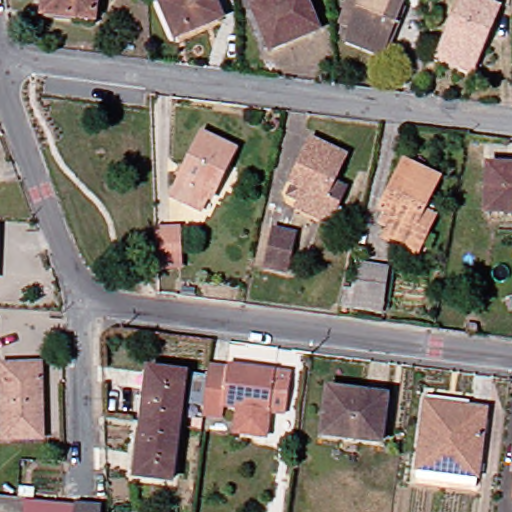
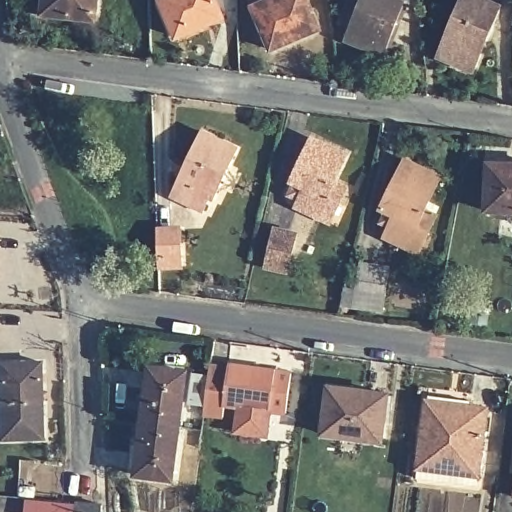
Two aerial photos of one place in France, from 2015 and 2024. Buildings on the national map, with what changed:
unchanged [(95,18),(45,12),(46,0),(97,0),(95,18)]
unchanged [(224,16),(177,36),(161,0),(217,0),(224,16)]
unchanged [(321,32),(273,53),(255,10),(251,0),(308,0),(321,32)]
unchanged [(355,0),(410,0),(408,5),(388,59),(352,45),(357,33),(344,27),(355,0)]
unchanged [(501,5),(473,71),(439,57),(463,0),(490,0),(501,5)]
unchanged [(205,132),(237,147),(214,197),(209,195),(203,208),(176,195),(205,132)]
unchanged [(302,210),(306,202),(296,196),(301,185),(298,184),(320,141),(354,158),(332,203),(343,209),(338,219),(335,226),(302,210)]
unchanged [(388,213),(412,163),(447,180),(425,225),(437,231),(428,249),(385,227),(391,214),(388,213)]
unchanged [(512,164),(512,211),(490,210),(491,163),(512,164)]
unchanged [(300,232),(290,271),(268,266),(277,226),(300,232)]
unchanged [(182,228),(182,266),(160,266),(158,229),(182,228)]
unchanged [(0,286),(0,234),(6,235),(3,286),(0,286)]
unchanged [(392,267),(386,309),(356,305),(362,263),(392,267)]
unchanged [(44,362),(46,437),(5,438),(3,363),(44,362)]
unchanged [(251,433),(235,430),(239,405),(224,403),(222,415),(205,412),(212,363),(229,365),(229,362),(292,371),(287,412),(271,410),(267,435),(251,433)]
unchanged [(144,420),(151,366),(188,371),(181,425),(144,420)]
unchanged [(389,393),(383,440),(324,432),(330,386),(389,393)]
unchanged [(487,417),(479,485),(420,477),(428,410),(487,417)]
unchanged [(175,478),(137,473),(144,420),(181,425),(175,478)]
unchanged [(78,512),(79,502),(102,505),(102,512),(78,512)]

